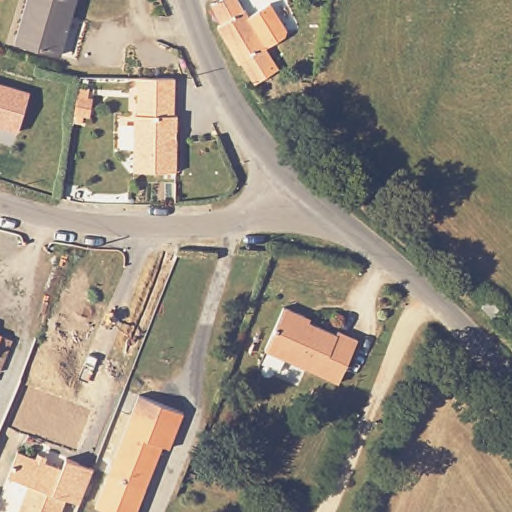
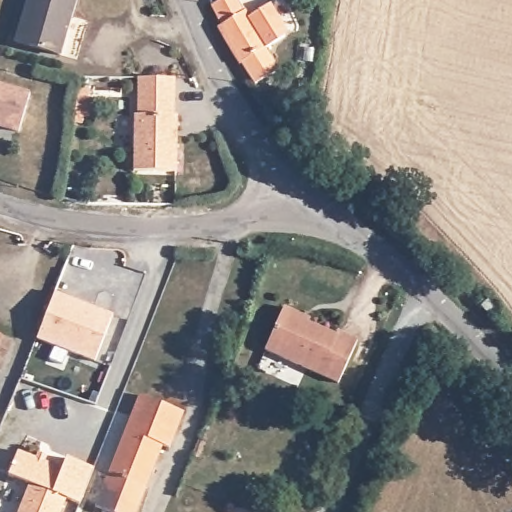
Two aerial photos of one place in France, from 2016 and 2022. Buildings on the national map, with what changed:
unchanged [(61,54),(18,42),(29,0),(76,0),(61,54)]
unchanged [(250,12),(265,2),(285,31),(265,44),(275,61),(278,65),(272,69),(254,80),(241,59),(240,60),(217,22),(221,20),(213,0),(241,0),(250,12)]
unchanged [(0,130),(0,85),(29,94),(16,135),(0,130)]
unchanged [(175,105),(174,125),(177,125),(177,154),(176,154),(176,182),(154,181),(154,180),(133,180),(133,152),(134,152),(135,124),(138,124),(139,86),(148,86),(175,87),(175,105)]
new [(54,290),(113,314),(95,361),(35,338),(54,290)]
unchanged [(303,324),(334,339),(337,333),(357,342),(337,385),(265,350),(284,308),(306,318),(303,324)]
unchanged [(0,366),(0,335),(11,340),(0,366)]
unchanged [(112,457),(144,378),(188,396),(174,431),(166,429),(149,472),(136,505),(99,490),(112,457)]
unchanged [(17,512),(29,485),(8,476),(18,451),(61,470),(65,458),(93,470),(79,506),(65,500),(60,512),(17,512)]

